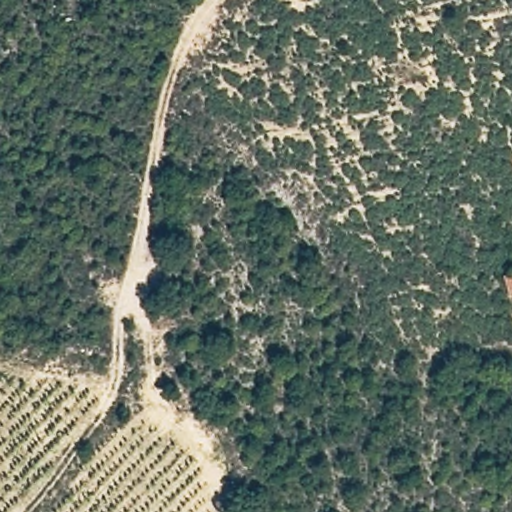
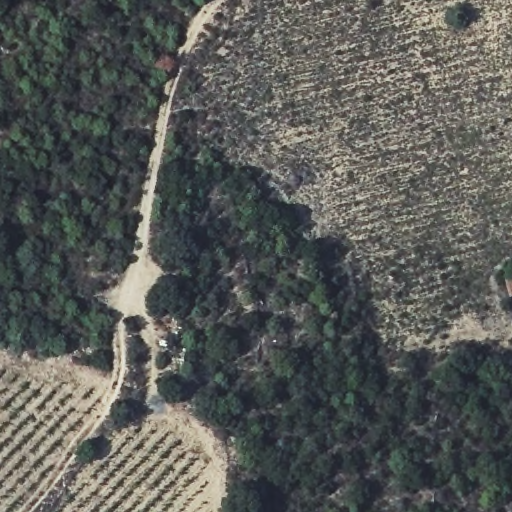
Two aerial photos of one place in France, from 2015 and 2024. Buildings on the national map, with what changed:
unchanged [(503,274),(512,272),(512,300),(503,274)]

